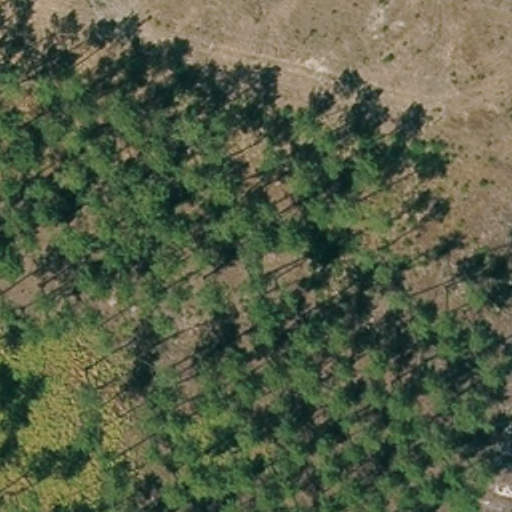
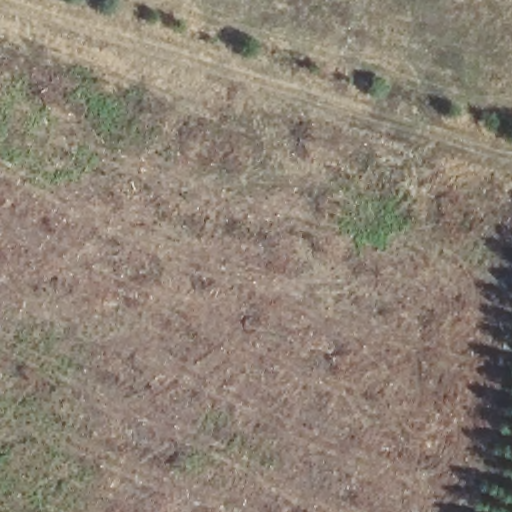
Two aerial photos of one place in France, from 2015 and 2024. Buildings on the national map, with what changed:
[]

